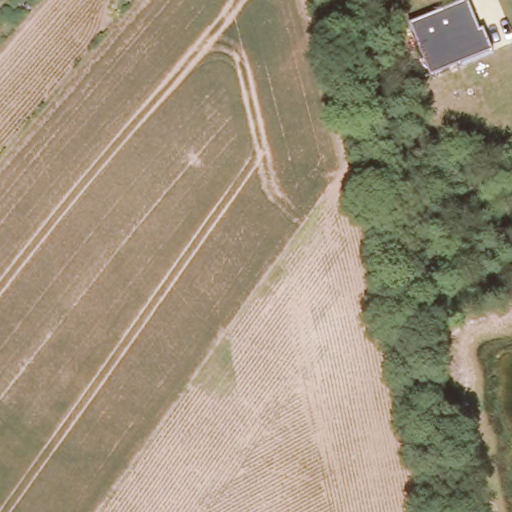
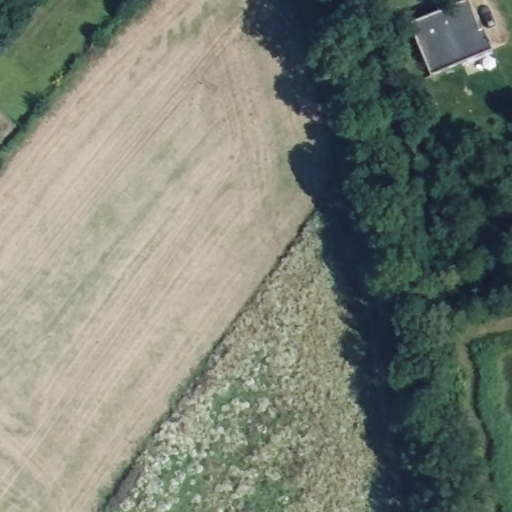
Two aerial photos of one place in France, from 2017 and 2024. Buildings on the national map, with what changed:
unchanged [(466,0),(468,0),(480,31),(483,29),(490,51),(430,76),(410,23),(466,0)]

